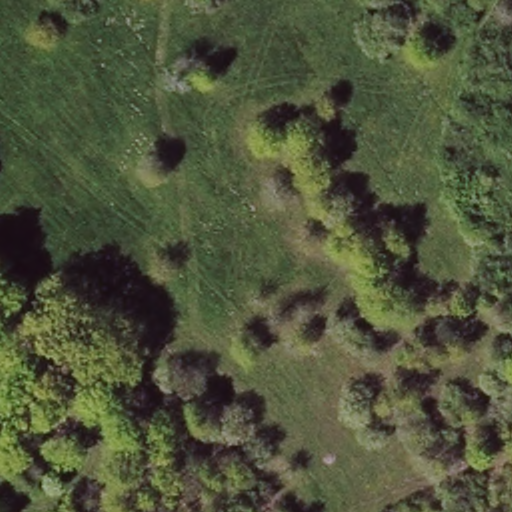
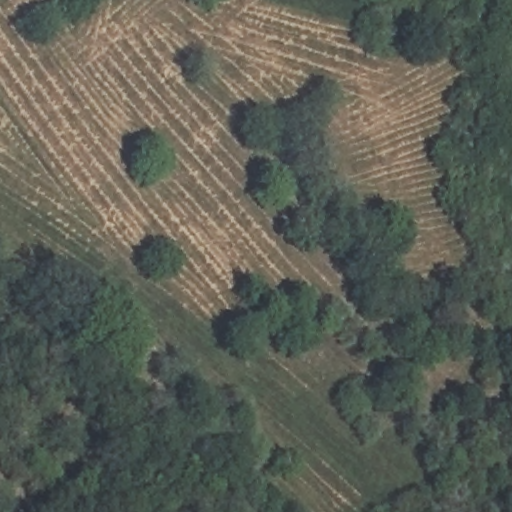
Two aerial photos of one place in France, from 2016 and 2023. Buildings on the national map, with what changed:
[]

